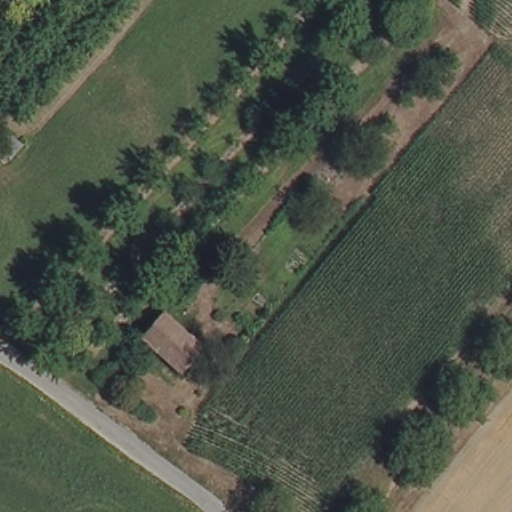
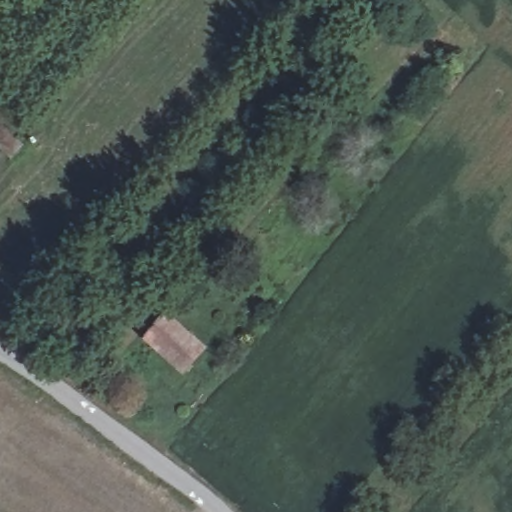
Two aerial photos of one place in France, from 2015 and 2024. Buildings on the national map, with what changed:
unchanged [(0,158),(0,134),(14,146),(2,159),(0,158)]
unchanged [(199,350),(177,372),(144,338),(167,317),(199,350)]

